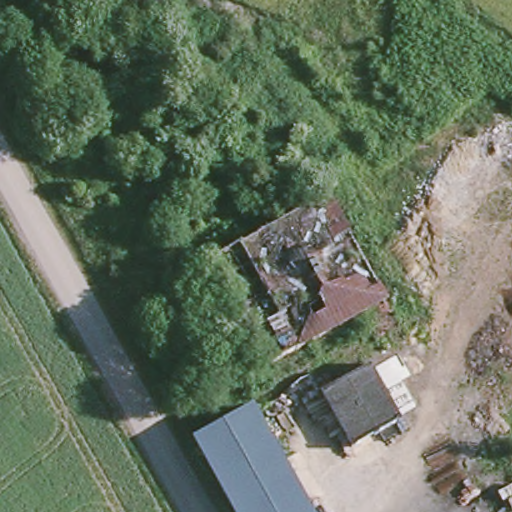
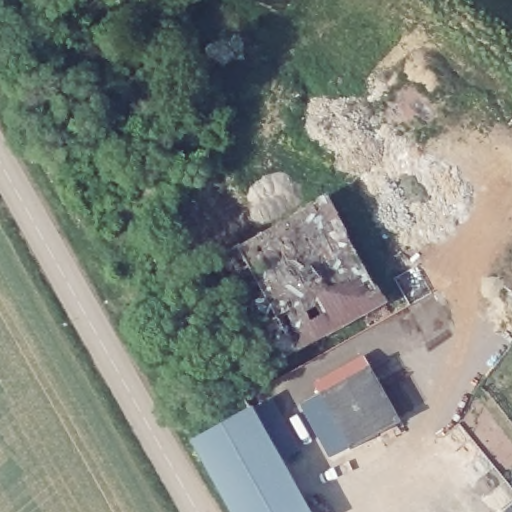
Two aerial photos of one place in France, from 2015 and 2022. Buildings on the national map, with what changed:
unchanged [(368,365),(398,421),(349,450),(317,395),(368,365)]
unchanged [(192,440),(200,436),(251,407),(310,512),(235,512),(192,440)]

